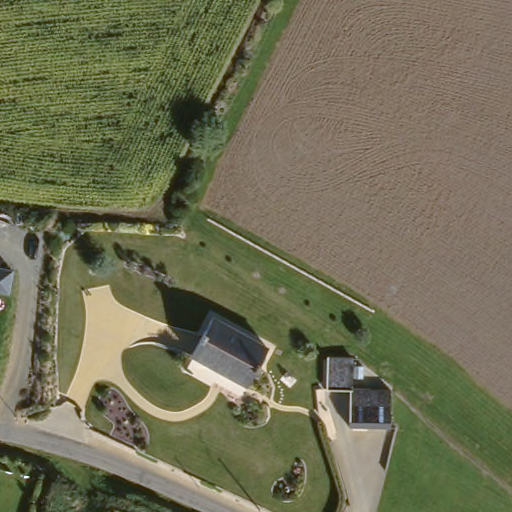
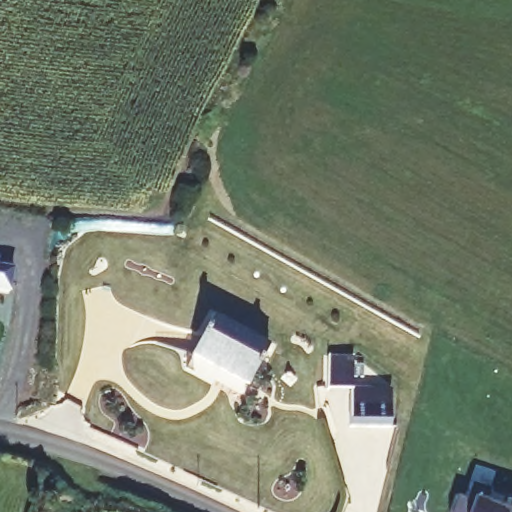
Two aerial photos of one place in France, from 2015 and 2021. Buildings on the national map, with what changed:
unchanged [(12,293),(0,292),(0,268),(15,268),(12,293)]
unchanged [(194,347),(216,313),(267,348),(245,381),(194,347)]
unchanged [(352,356),(351,385),(390,387),(386,426),(350,424),(348,391),(326,391),(326,356),(352,356)]
new [(467,496),(473,481),(491,488),(486,500),(512,509),(512,512),(452,512),(458,493),(467,496)]

